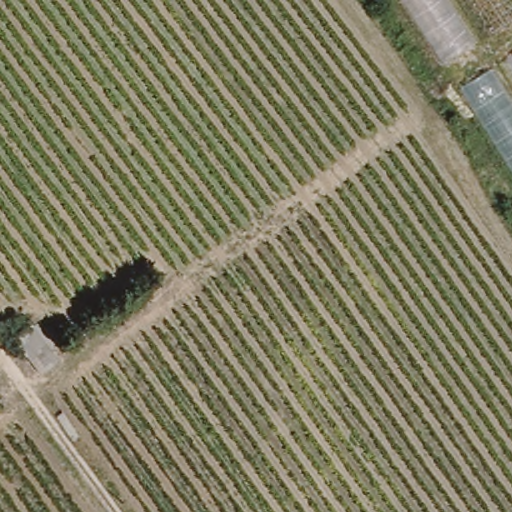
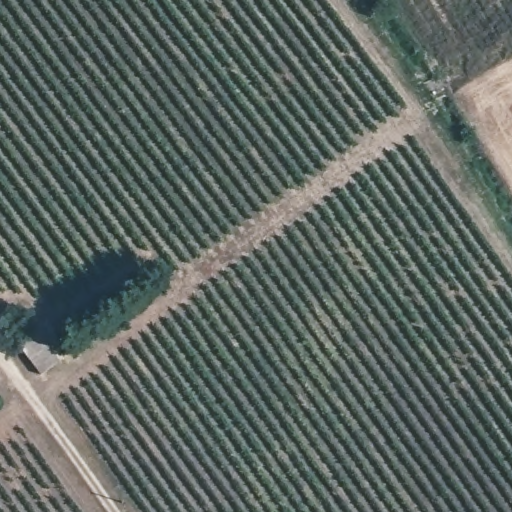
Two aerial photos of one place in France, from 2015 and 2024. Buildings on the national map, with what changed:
demolished [(403,0),(512,0),(512,24),(447,68),(403,0)]
demolished [(460,90),(512,57),(512,171),(460,90)]
unchanged [(30,354),(48,335),(66,360),(48,375),(30,354)]

